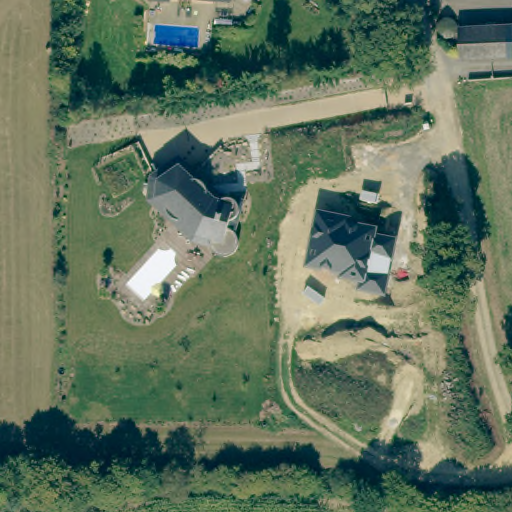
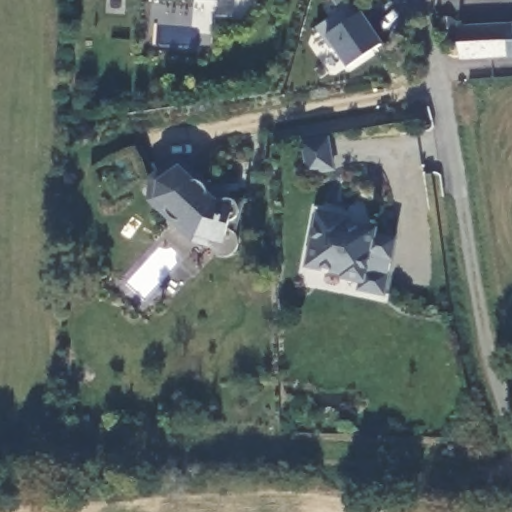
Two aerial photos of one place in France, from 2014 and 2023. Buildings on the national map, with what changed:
new [(333,0),(360,0),(361,2),(356,5),(361,12),(371,27),(370,28),(381,45),(347,67),(333,47),(330,49),(315,29),(340,11),(333,0)]
unchanged [(472,58),(462,59),(460,27),(507,25),(508,56),(472,58)]
unchanged [(512,57),(508,56),(507,25),(512,25),(512,57)]
new [(301,142),(330,137),(335,171),(306,176),(301,142)]
unchanged [(230,229),(230,231),(231,231),(231,232),(232,233),(232,234),(233,236),(233,237),(234,237),(234,239),(234,240),(233,242),(232,242),(232,244),(232,245),(231,245),(231,246),(230,247),(230,249),(229,249),(228,250),(227,251),(226,251),(225,252),(224,252),(221,252),(220,252),(219,252),(217,252),(215,252),(213,251),(212,251),(210,250),(209,248),(209,247),(207,246),(206,245),(206,244),(206,243),(205,242),(205,241),(205,239),(205,237),(205,236),(206,235),(194,232),(179,217),(176,217),(174,217),(170,216),(169,215),(166,212),(165,210),(164,207),(163,202),(151,191),(157,185),(151,173),(175,157),(190,172),(192,171),(206,184),(215,192),(224,195),(237,200),(229,229),(230,229)]
unchanged [(343,219),(343,226),(373,231),(372,237),(394,241),(383,292),(360,287),(361,278),(347,276),(347,268),(310,262),(320,215),(343,219)]

